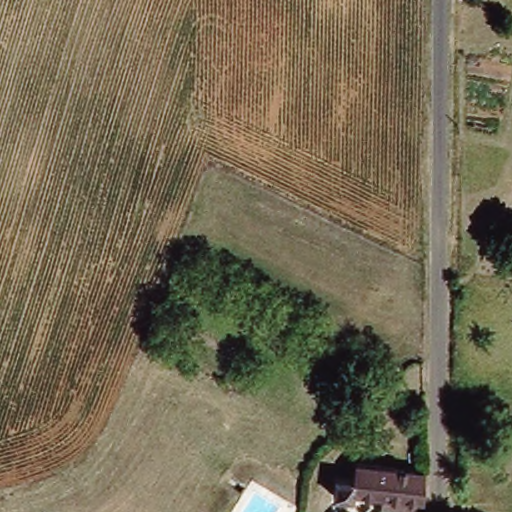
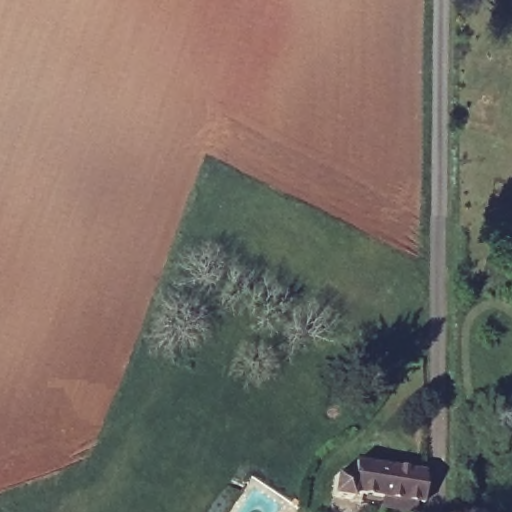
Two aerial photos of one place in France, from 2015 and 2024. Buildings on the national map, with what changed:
unchanged [(427,474),(427,504),(355,496),(354,501),(332,497),(337,463),(353,465),(427,474)]

